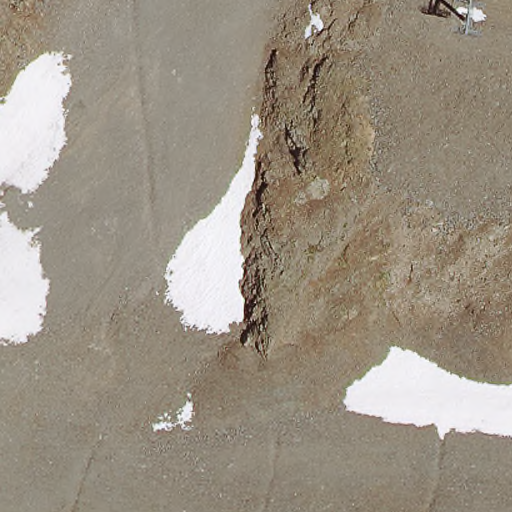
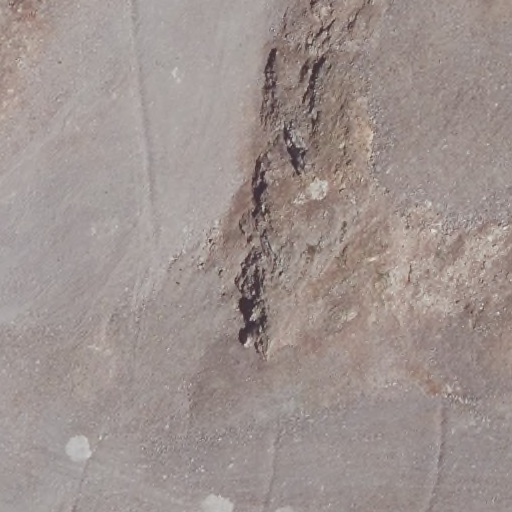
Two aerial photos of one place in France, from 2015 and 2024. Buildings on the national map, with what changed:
[]

